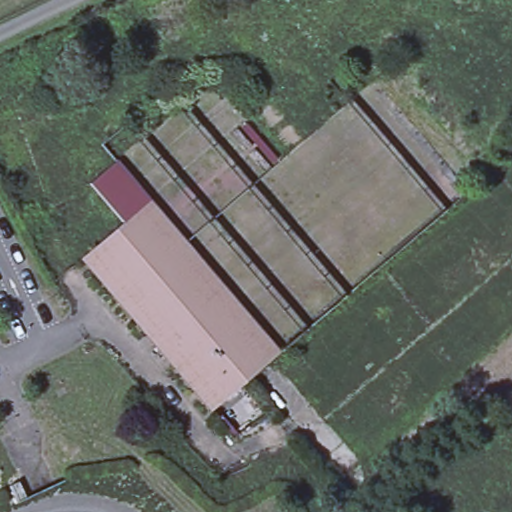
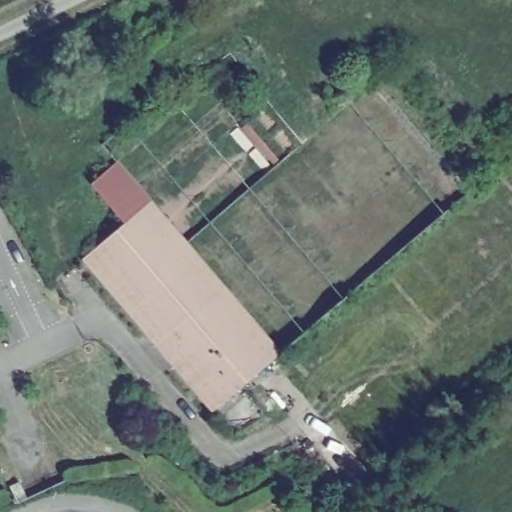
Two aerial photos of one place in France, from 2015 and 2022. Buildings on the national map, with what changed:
unchanged [(282,351),(212,409),(83,257),(125,221),(91,182),(118,159),(282,351)]
unchanged [(20,485),(27,501),(18,505),(11,489),(20,485)]

